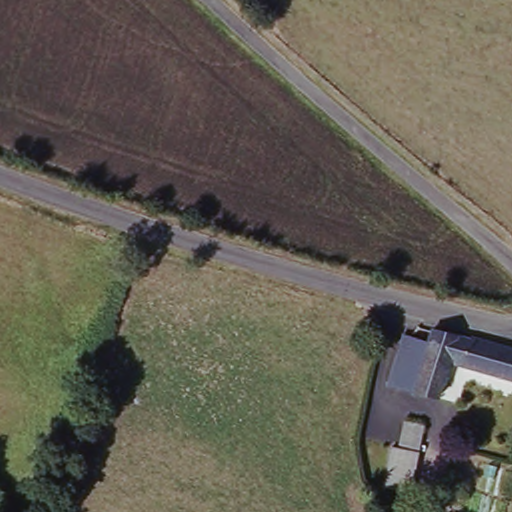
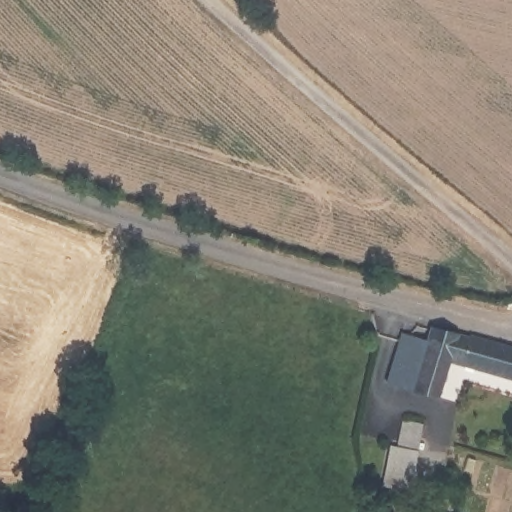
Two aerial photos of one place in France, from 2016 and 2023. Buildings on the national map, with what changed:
unchanged [(467,367),(469,362),(455,358),(442,400),(415,391),(391,385),(407,334),(431,341),(435,332),(474,343),(476,339),(512,349),(512,380),(467,367)]
unchanged [(424,426),(418,452),(396,447),(402,422),(424,426)]

